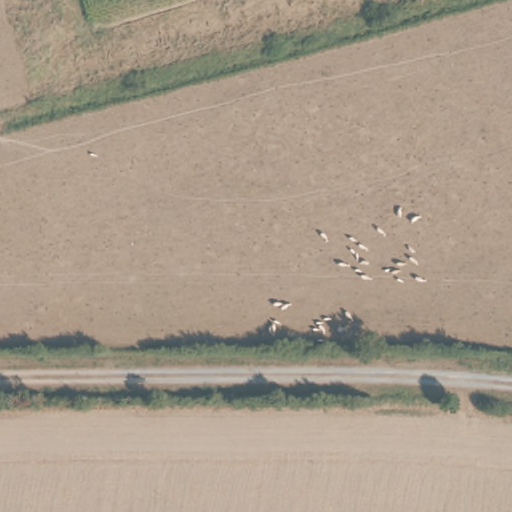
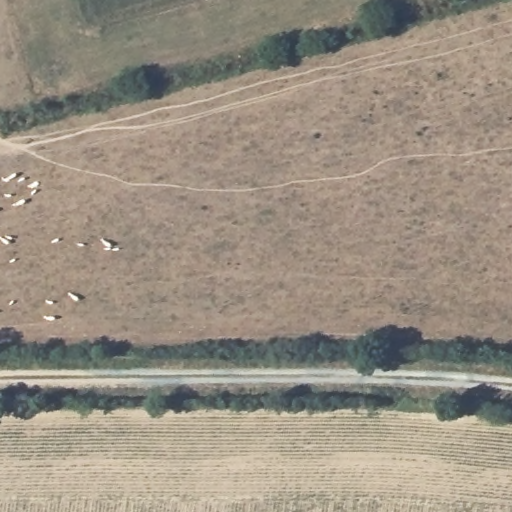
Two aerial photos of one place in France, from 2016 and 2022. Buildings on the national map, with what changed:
[]

